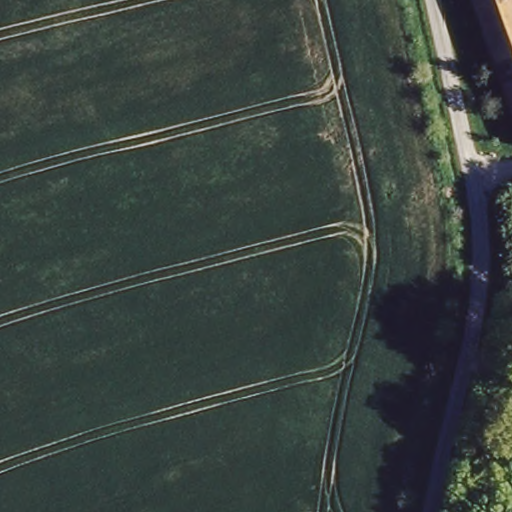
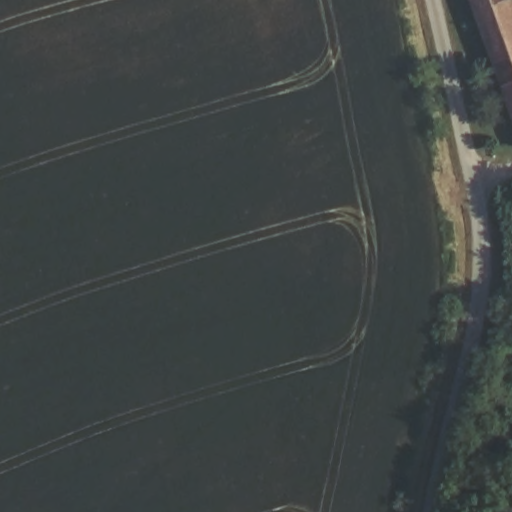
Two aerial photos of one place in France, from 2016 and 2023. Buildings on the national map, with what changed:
unchanged [(512,1),(512,120),(468,0),(512,0),(512,1)]

